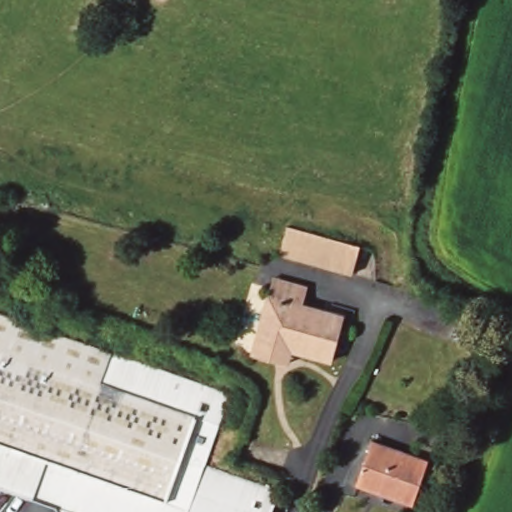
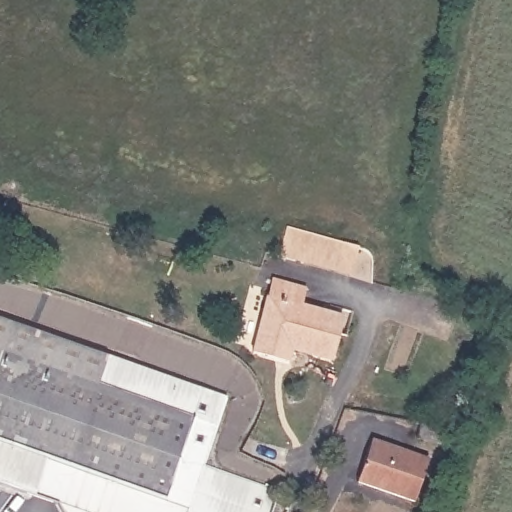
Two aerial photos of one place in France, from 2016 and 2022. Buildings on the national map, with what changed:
unchanged [(289,227),(361,246),(352,276),(281,255),(289,227)]
unchanged [(329,354),(275,340),(269,357),(251,351),(270,294),(275,275),(308,286),(301,305),(341,318),(329,354)]
unchanged [(266,497),(261,512),(70,512),(69,511),(67,510),(66,509),(65,508),(64,507),(64,506),(63,506),(62,505),(61,504),(60,503),(60,502),(59,501),(59,500),(58,499),(57,499),(56,498),(0,477),(0,314),(224,395),(196,471),(266,497)]
unchanged [(370,439),(427,460),(413,501),(355,480),(370,439)]

